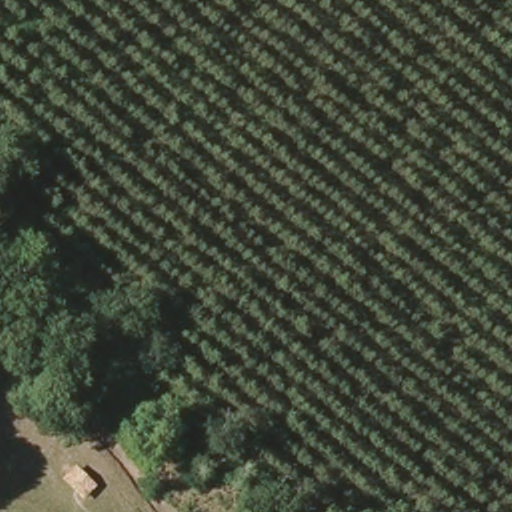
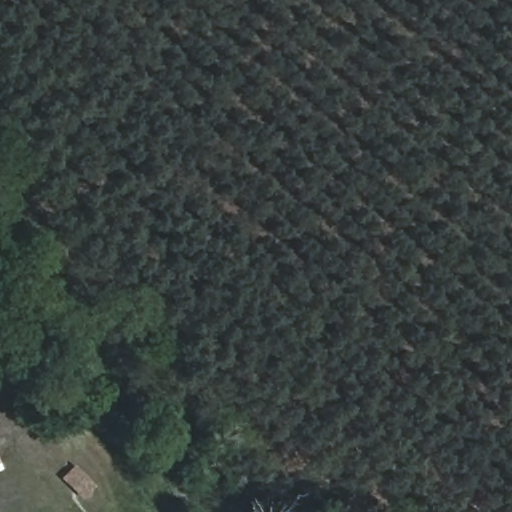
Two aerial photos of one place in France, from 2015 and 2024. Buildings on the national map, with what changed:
unchanged [(94,486),(83,497),(64,479),(75,468),(94,486)]

